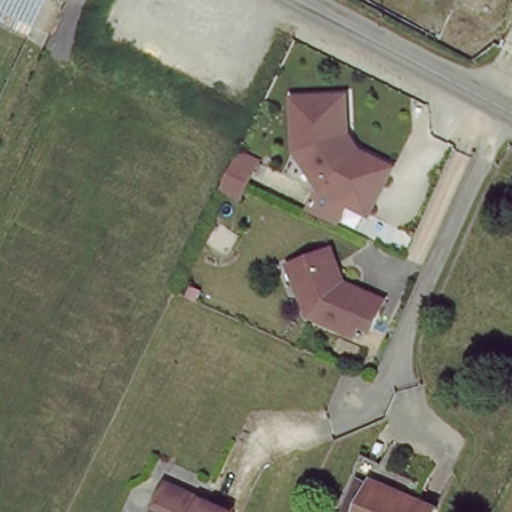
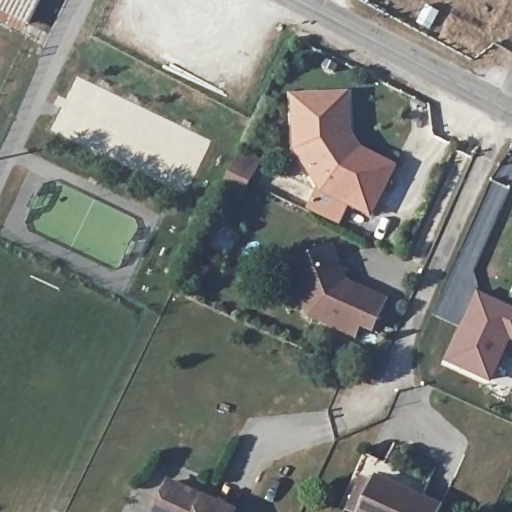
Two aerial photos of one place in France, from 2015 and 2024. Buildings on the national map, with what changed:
unchanged [(25,39),(0,25),(0,0),(40,0),(42,1),(25,39)]
unchanged [(345,93),(347,133),(356,145),(397,164),(372,216),(350,209),(342,225),(307,210),(318,186),(295,151),(291,99),(345,93)]
new [(242,146),(261,156),(244,191),(225,181),(242,146)]
unchanged [(333,244),(350,285),(388,299),(373,334),(362,331),(357,340),(305,317),(288,260),(333,244)]
new [(467,305),(476,287),(512,304),(512,334),(505,331),(485,374),(445,355),(462,317),(467,305)]
unchanged [(155,507),(170,477),(234,509),(232,512),(152,512),(155,507)]
unchanged [(437,511),(437,512),(359,512),(372,480),(437,511)]

